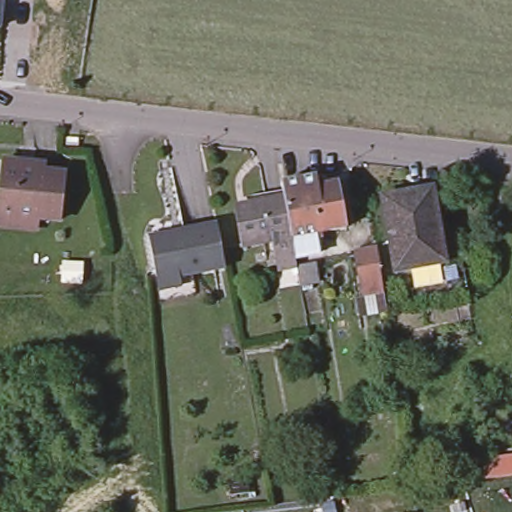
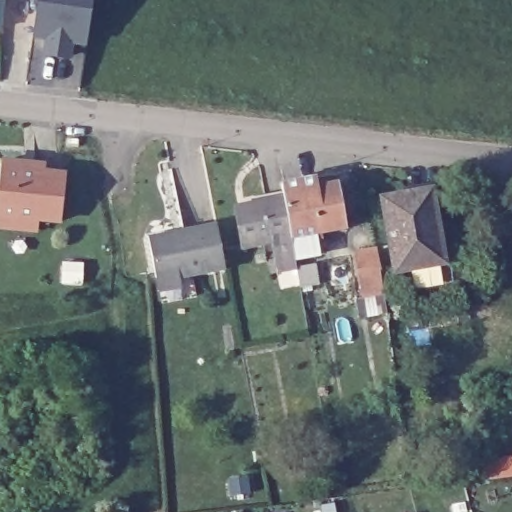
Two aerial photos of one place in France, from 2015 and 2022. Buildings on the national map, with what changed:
new [(0,31),(0,30),(0,0),(4,0),(0,31)]
new [(47,41),(33,39),(39,0),(95,0),(88,47),(75,44),(72,61),(45,56),(47,41)]
unchanged [(20,166),(42,169),(42,176),(63,179),(63,181),(58,224),(35,221),(34,234),(0,229),(0,164),(20,166)]
unchanged [(280,198),(278,184),(331,172),(342,227),(287,239),(280,198)]
unchanged [(384,196),(430,188),(439,239),(442,239),(445,261),(396,270),(384,196)]
unchanged [(232,208),(280,198),(287,239),(240,250),(232,208)]
unchanged [(150,237),(170,232),(185,230),(218,223),(227,267),(182,275),(183,285),(161,290),(158,277),(150,237)]
unchanged [(357,296),(362,294),(354,249),(377,246),(389,313),(361,317),(357,296)]
unchanged [(297,268),(315,266),(318,282),(300,286),(297,268)]
unchanged [(512,457),(512,477),(500,478),(486,480),(483,462),(496,460),(512,457)]

